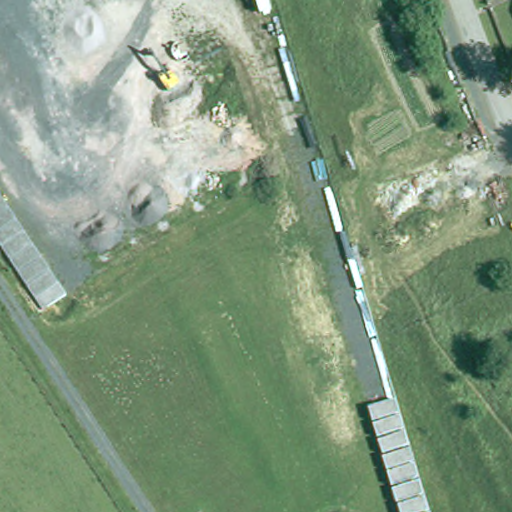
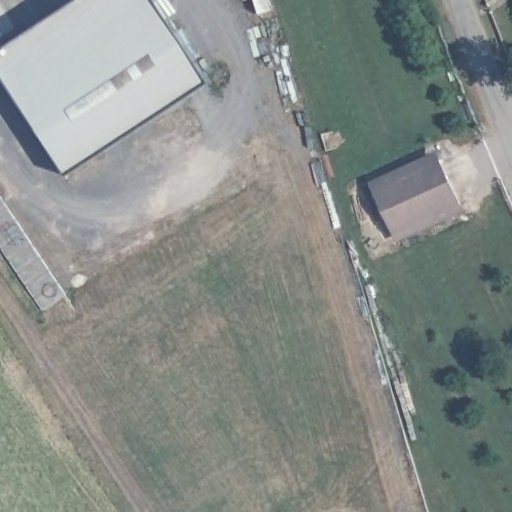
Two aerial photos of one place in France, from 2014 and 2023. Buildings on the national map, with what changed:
new [(69,175),(0,74),(0,50),(76,0),(157,0),(211,81),(69,175)]
new [(466,210),(397,242),(370,183),(438,151),(466,210)]
unchanged [(66,293),(42,309),(0,246),(0,194),(66,293)]

